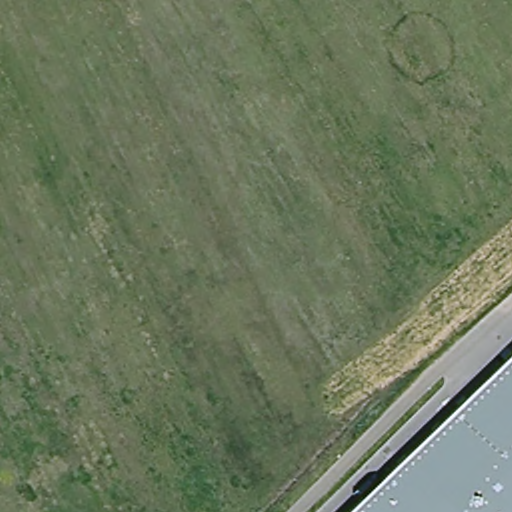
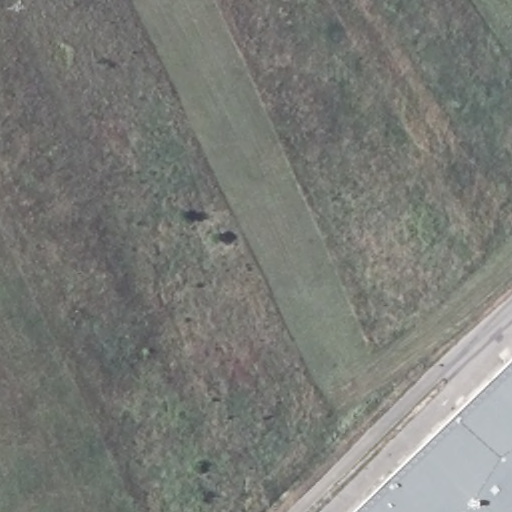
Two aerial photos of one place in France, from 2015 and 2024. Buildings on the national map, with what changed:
unchanged [(512,361),(512,512),(354,512),(512,361)]

